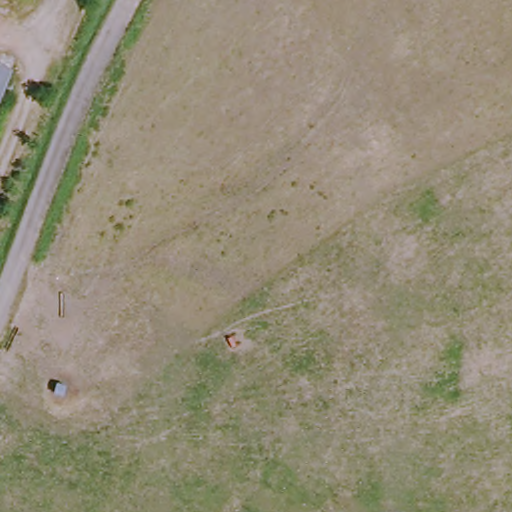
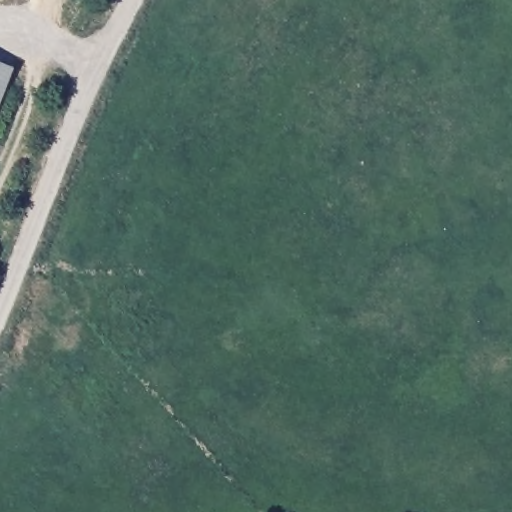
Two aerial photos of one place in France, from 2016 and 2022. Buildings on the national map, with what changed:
unchanged [(0,71),(17,78),(0,122),(0,71)]

